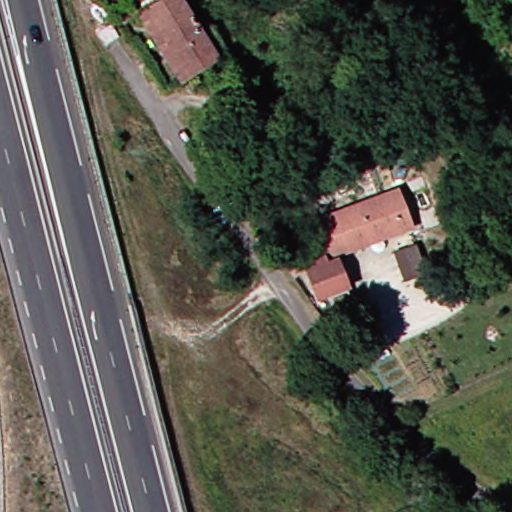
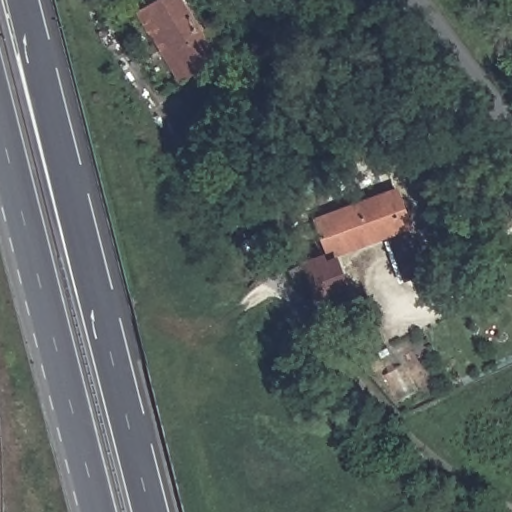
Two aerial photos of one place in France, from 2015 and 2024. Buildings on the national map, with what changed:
unchanged [(152,10),(168,0),(184,0),(203,29),(212,24),(229,50),(192,73),(185,78),(145,15),(152,10)]
unchanged [(335,257),(322,222),(401,191),(415,225),(397,233),(371,243),(335,257)]
unchanged [(330,265),(342,261),(352,286),(323,297),(310,263),(327,257),(330,265)]

